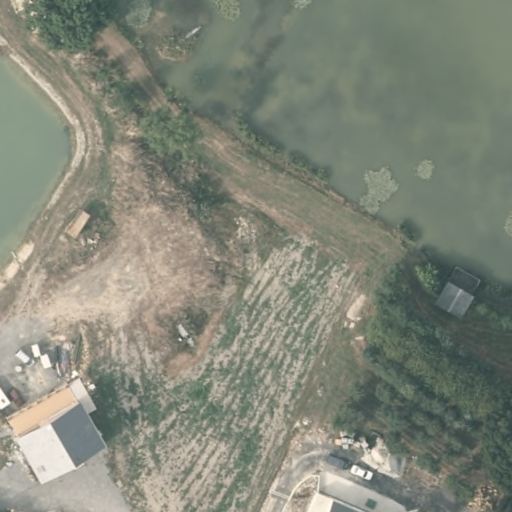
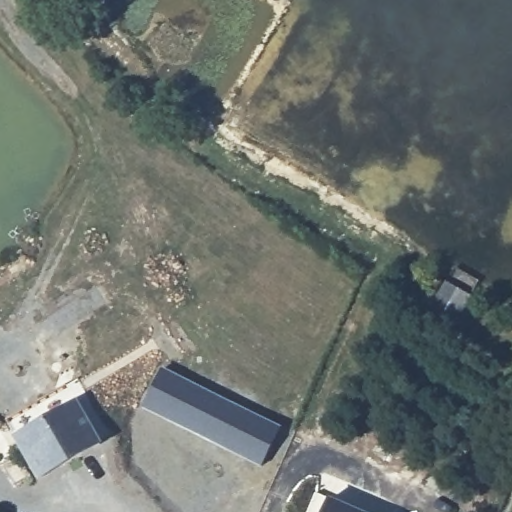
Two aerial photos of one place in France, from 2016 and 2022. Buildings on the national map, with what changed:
unchanged [(458,320),(429,304),(442,280),(470,297),(458,320)]
new [(281,427),(262,467),(141,407),(161,368),(281,427)]
unchanged [(41,477),(14,434),(76,399),(100,444),(41,477)]
unchanged [(356,512),(322,512),(326,501),(356,512)]

